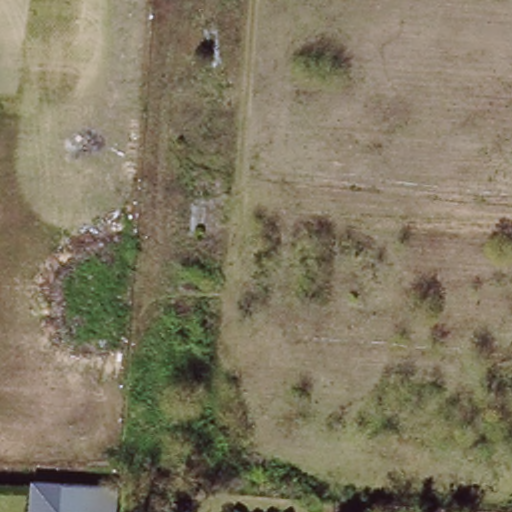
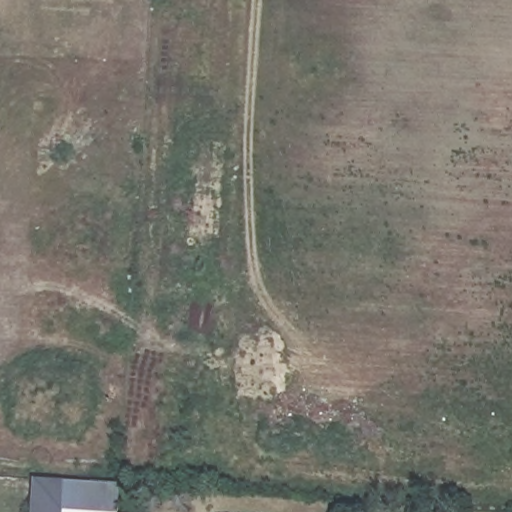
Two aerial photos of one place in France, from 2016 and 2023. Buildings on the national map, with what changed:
unchanged [(30,479),(62,482),(58,482),(58,512),(28,512),(30,479)]
unchanged [(58,482),(116,484),(115,512),(58,512),(58,482)]

